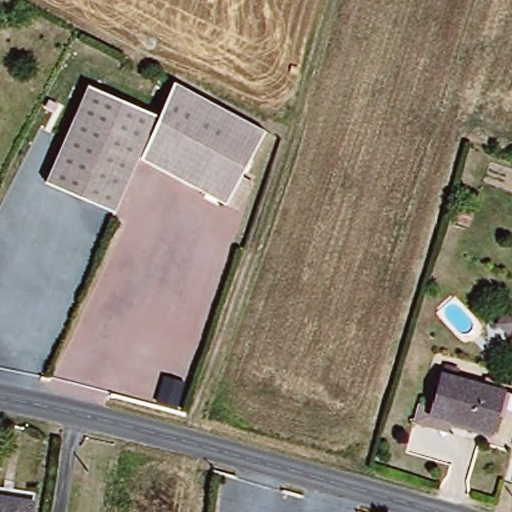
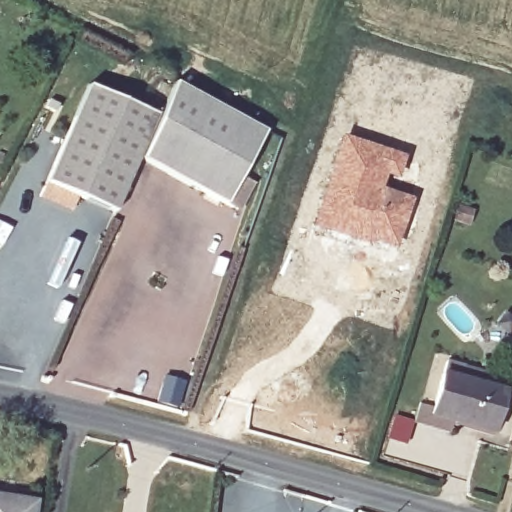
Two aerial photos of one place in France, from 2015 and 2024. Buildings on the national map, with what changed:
unchanged [(145,150),(110,218),(45,184),(44,184),(79,116),(92,89),(159,123),(159,124),(145,150)]
unchanged [(240,199),(235,208),(144,161),(145,159),(149,152),(180,91),(245,125),(272,138),(240,199)]
new [(342,135),(406,154),(398,179),(387,176),(382,187),(413,197),(396,248),(311,224),(342,135)]
unchanged [(507,395),(495,432),(437,417),(450,379),(507,395)]
unchanged [(43,496),(40,512),(0,512),(0,489),(43,496)]

